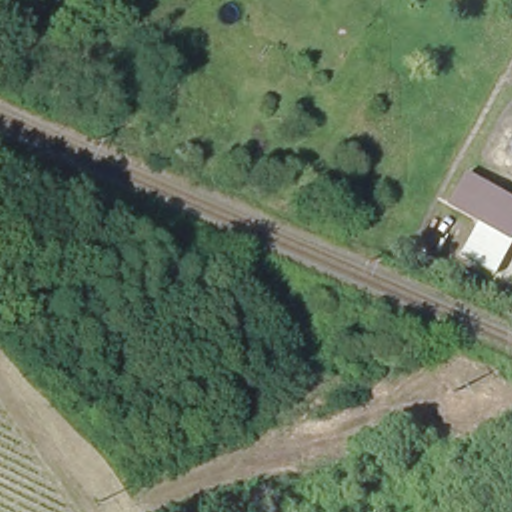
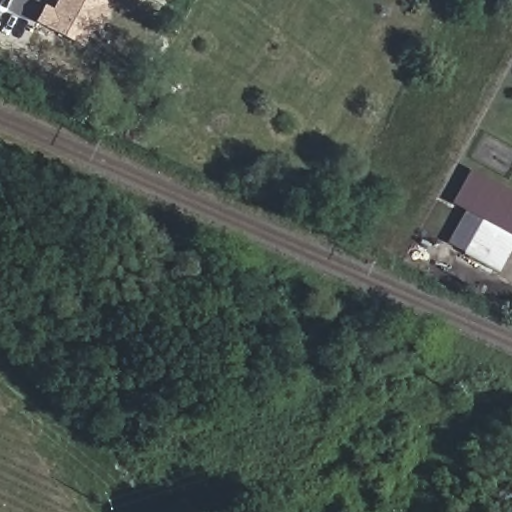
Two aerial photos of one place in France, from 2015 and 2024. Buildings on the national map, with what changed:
new [(44,5),(54,9),(58,0),(105,0),(76,46),(35,24),(44,5)]
unchanged [(452,204),(470,169),(512,191),(512,235),(482,220),(452,204)]
unchanged [(499,275),(464,255),(482,220),(512,235),(512,253),(499,275)]

